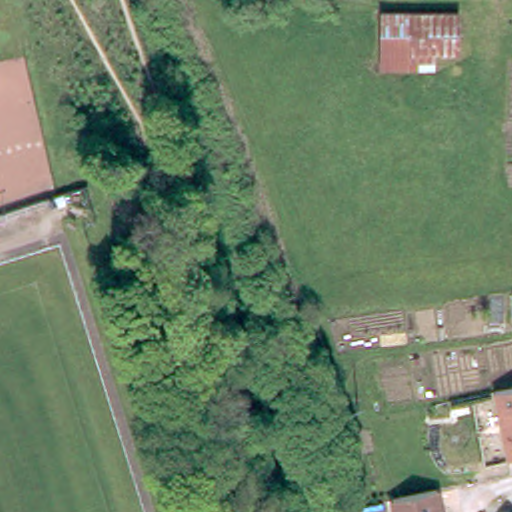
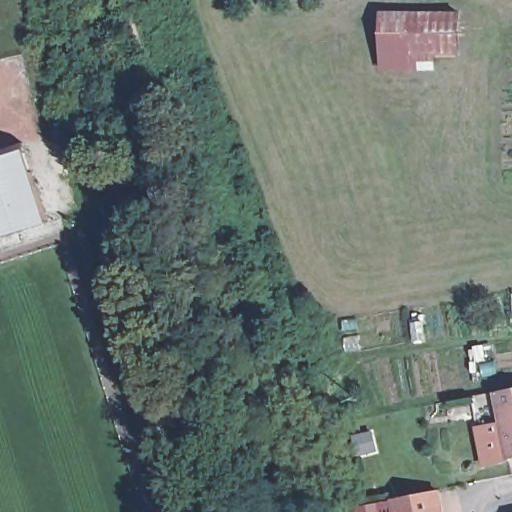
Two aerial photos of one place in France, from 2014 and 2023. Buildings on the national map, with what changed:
unchanged [(378,7),(454,8),(454,48),(431,48),(430,62),(378,62),(378,7)]
demolished [(433,106),(433,65),(455,66),(455,106),(433,106)]
new [(26,149),(48,221),(0,236),(0,157),(26,149)]
unchanged [(494,388),(512,384),(512,453),(508,453),(494,388)]
unchanged [(442,512),(396,512),(392,494),(435,484),(442,512)]

